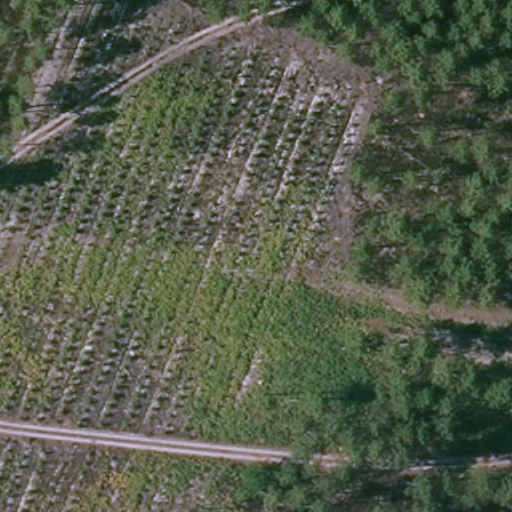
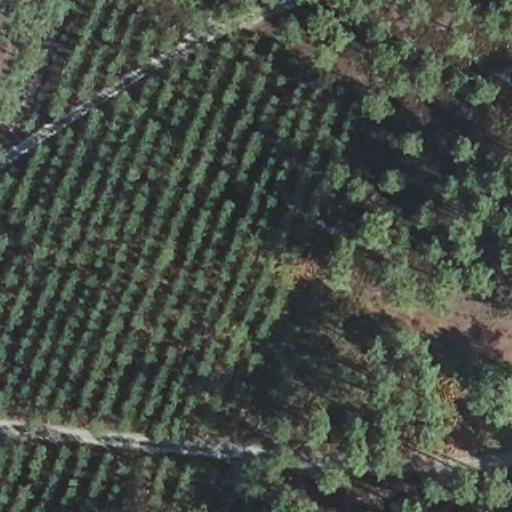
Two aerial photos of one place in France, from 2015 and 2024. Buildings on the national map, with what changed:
[]

